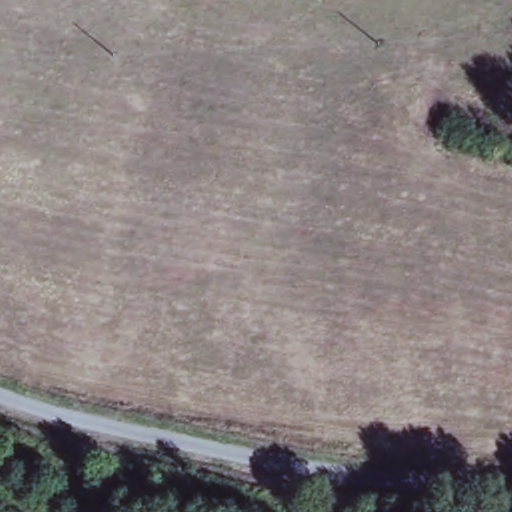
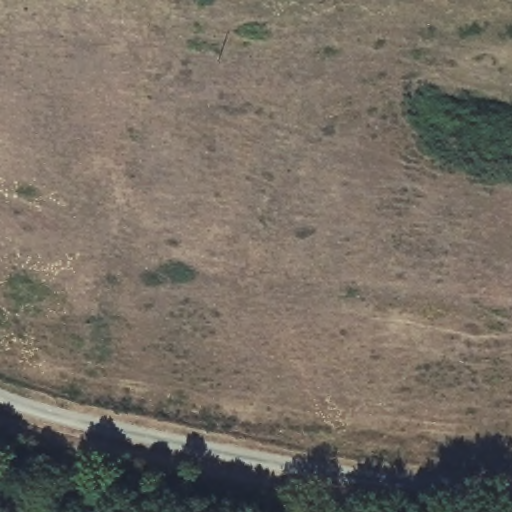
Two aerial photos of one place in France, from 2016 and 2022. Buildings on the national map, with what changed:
[]

